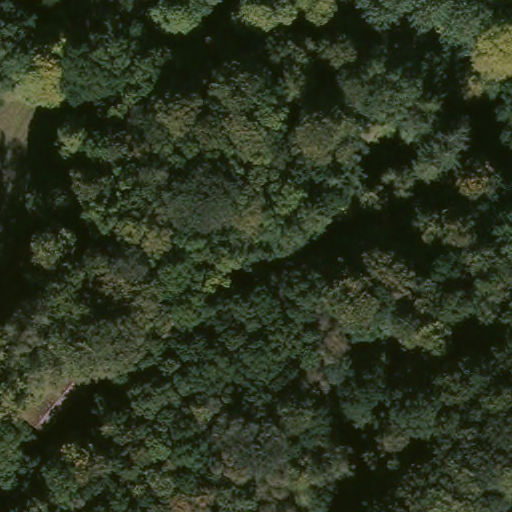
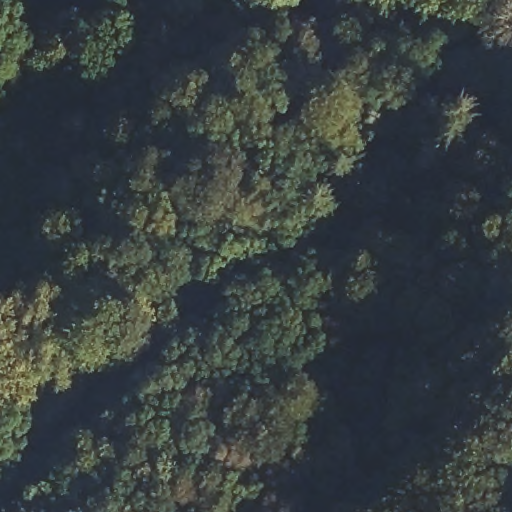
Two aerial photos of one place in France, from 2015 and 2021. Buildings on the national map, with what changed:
unchanged [(75,186),(111,206),(92,243),(57,223),(75,186)]
unchanged [(69,344),(98,374),(35,436),(6,406),(69,344)]

